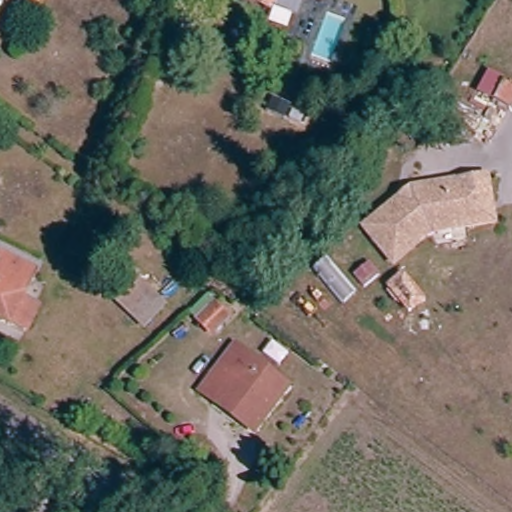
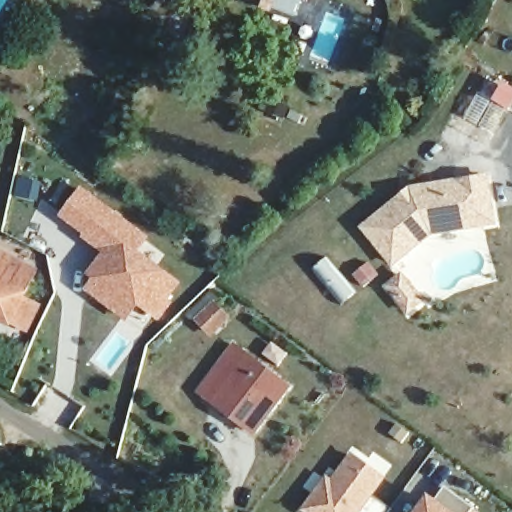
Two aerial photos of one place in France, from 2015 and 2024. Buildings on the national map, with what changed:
unchanged [(271,1),(267,0),(272,0),(271,1)]
unchanged [(512,117),(512,118),(477,99),(489,74),(512,90),(512,117)]
unchanged [(491,217),(428,230),(391,259),(362,223),(398,194),(407,186),(482,172),(491,217)]
new [(15,174),(42,180),(37,202),(10,195),(15,174)]
new [(82,185),(151,237),(142,249),(183,282),(174,295),(177,297),(159,321),(138,307),(126,322),(83,288),(90,279),(84,275),(101,253),(57,215),(82,185)]
unchanged [(32,338),(12,328),(11,330),(0,325),(0,269),(12,275),(17,266),(34,274),(28,283),(33,287),(26,301),(45,312),(32,338)]
demolished [(156,296),(171,278),(183,293),(145,336),(108,300),(131,273),(156,296)]
unchanged [(201,331),(218,311),(228,318),(213,340),(201,331)]
unchanged [(202,398),(235,350),(285,385),(251,433),(236,422),(214,406),(202,398)]
new [(326,476),(333,481),(352,452),(389,478),(363,512),(304,512),(303,511),(326,476)]
new [(436,500),(447,488),(476,510),(474,512),(418,512),(430,496),(436,500)]

